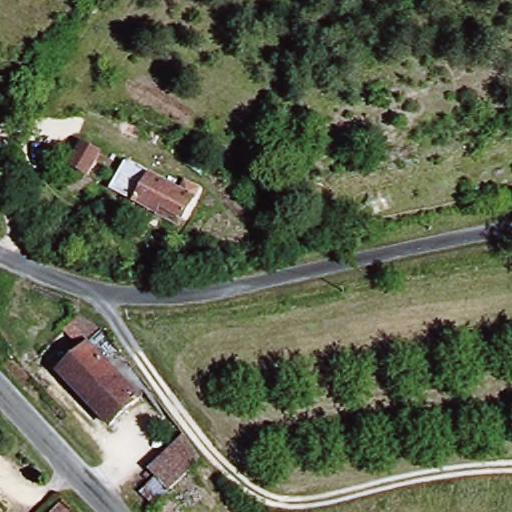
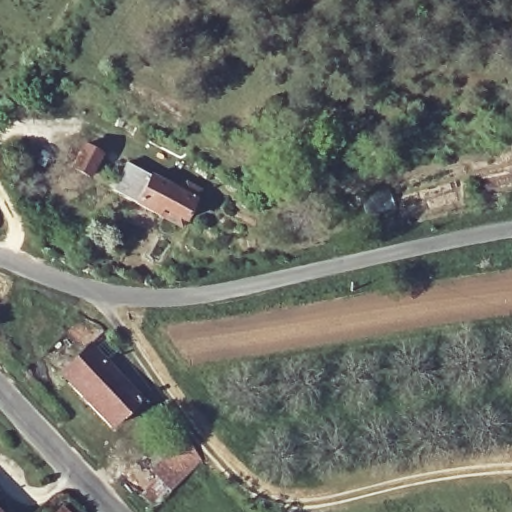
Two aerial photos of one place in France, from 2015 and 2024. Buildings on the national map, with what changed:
unchanged [(77,124),(96,134),(83,158),(64,148),(77,124)]
unchanged [(108,186),(122,158),(180,187),(187,173),(203,180),(187,212),(182,224),(157,212),(108,186)]
unchanged [(85,340),(135,390),(107,419),(57,368),(85,340)]
unchanged [(154,475),(149,465),(186,435),(199,460),(158,501),(145,486),(154,475)]
unchanged [(64,512),(44,512),(55,502),(64,512)]

